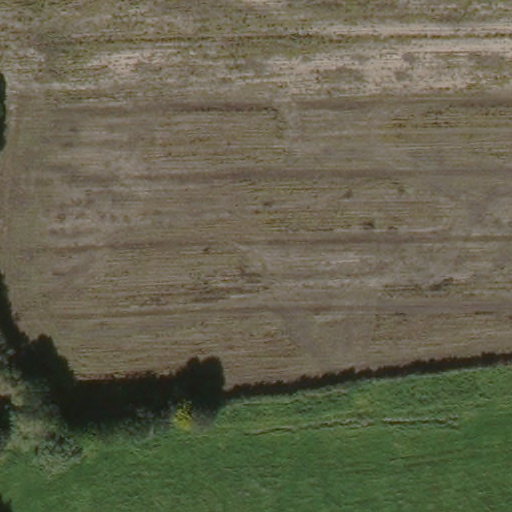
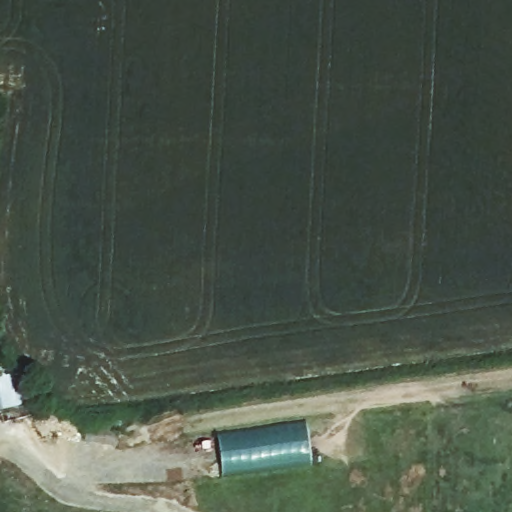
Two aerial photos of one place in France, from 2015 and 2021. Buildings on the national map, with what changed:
unchanged [(10,368),(16,400),(0,402),(0,371),(10,368)]
new [(305,427),(310,461),(222,472),(218,438),(305,427)]

